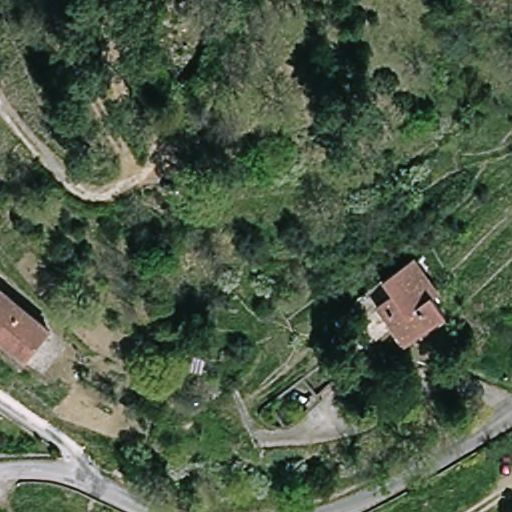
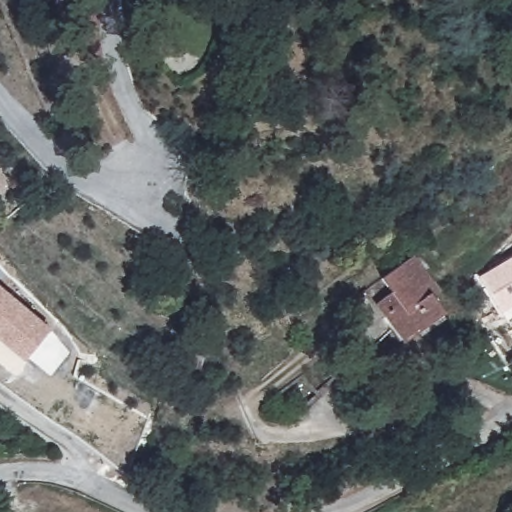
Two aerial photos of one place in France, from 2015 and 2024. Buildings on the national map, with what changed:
unchanged [(442,294),(435,298),(445,317),(407,337),(386,297),(398,291),(389,272),(422,255),(442,294)]
new [(502,314),(479,277),(512,257),(512,308),(502,314)]
unchanged [(8,335),(0,343),(0,289),(7,282),(56,328),(29,356),(8,335)]

